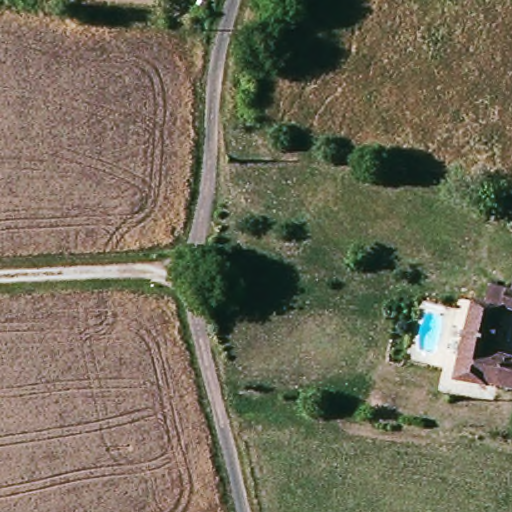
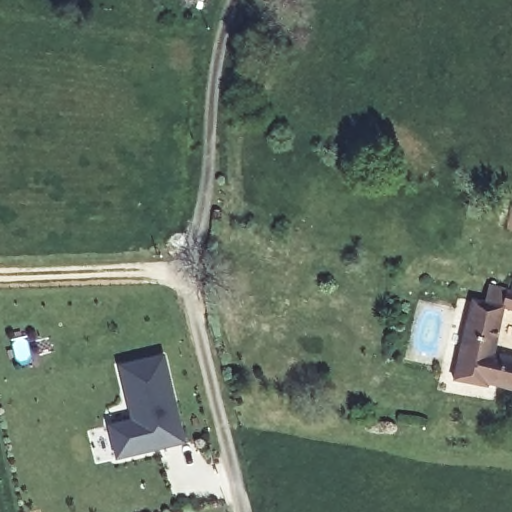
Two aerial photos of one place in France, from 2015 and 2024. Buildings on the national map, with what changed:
unchanged [(473,377),(462,382),(454,364),(471,294),(482,297),(486,279),(504,285),(506,280),(510,281),(512,277),(512,308),(507,307),(497,349),(512,353),(512,385),(501,383),(473,377)]
new [(165,354),(186,443),(115,460),(108,426),(130,420),(117,364),(165,354)]

